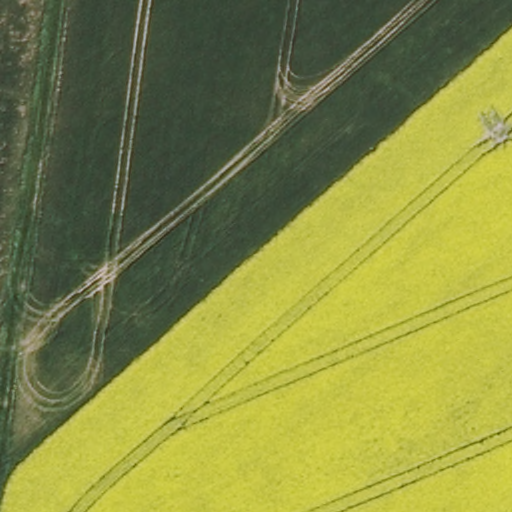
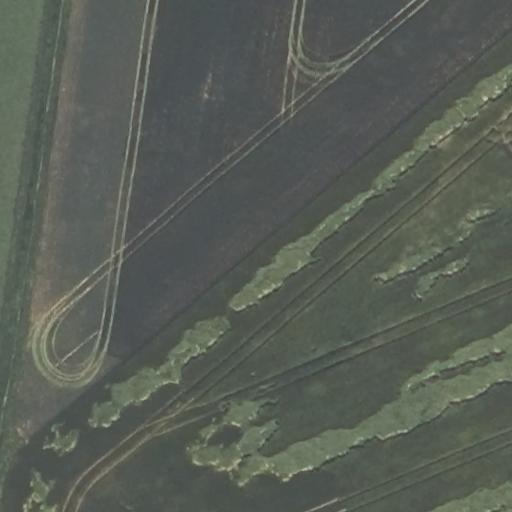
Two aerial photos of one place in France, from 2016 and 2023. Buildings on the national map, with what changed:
[]

